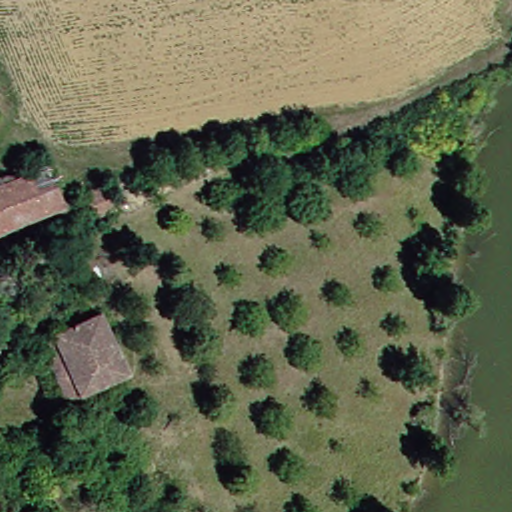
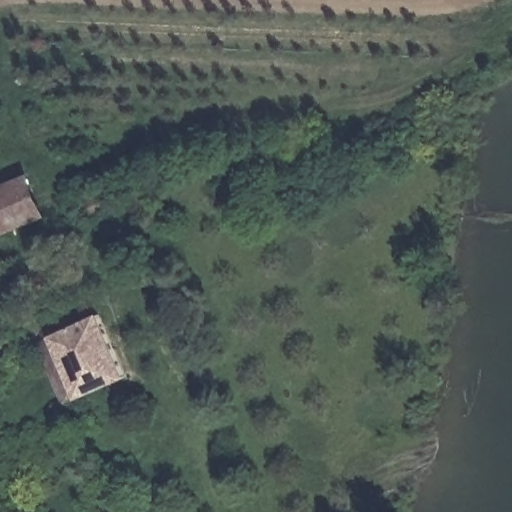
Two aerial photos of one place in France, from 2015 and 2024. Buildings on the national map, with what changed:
unchanged [(60,208),(0,238),(0,189),(41,169),(60,208)]
unchanged [(68,191),(93,179),(103,200),(77,212),(68,191)]
unchanged [(109,316),(135,376),(90,397),(61,335),(109,316)]
unchanged [(90,397),(72,403),(45,343),(61,335),(90,397)]

